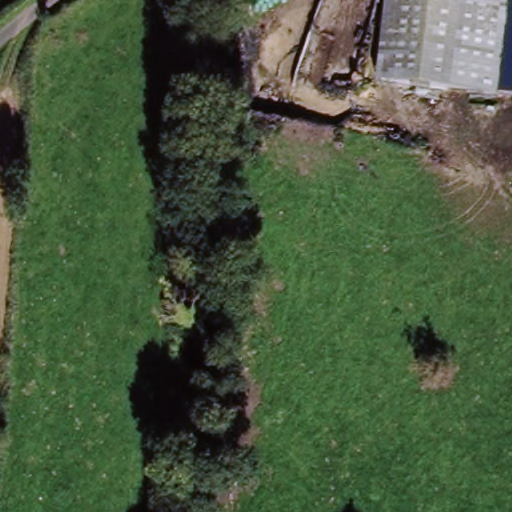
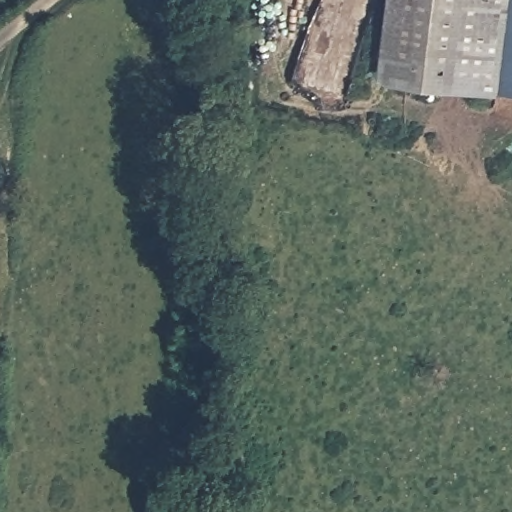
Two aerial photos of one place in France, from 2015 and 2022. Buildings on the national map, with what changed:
unchanged [(399,80),(404,0),(505,0),(500,86),(399,80)]
unchanged [(500,86),(505,0),(512,0),(512,89),(500,86)]

